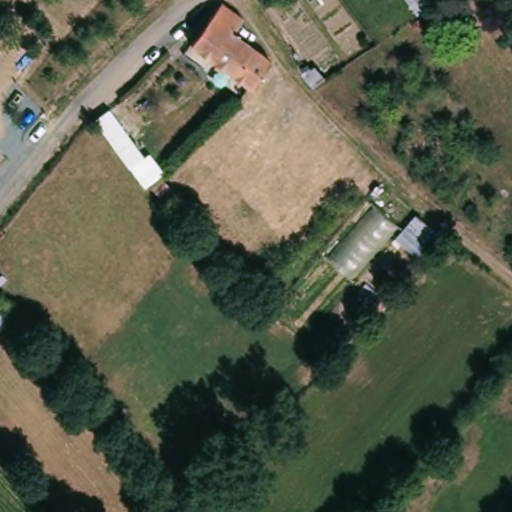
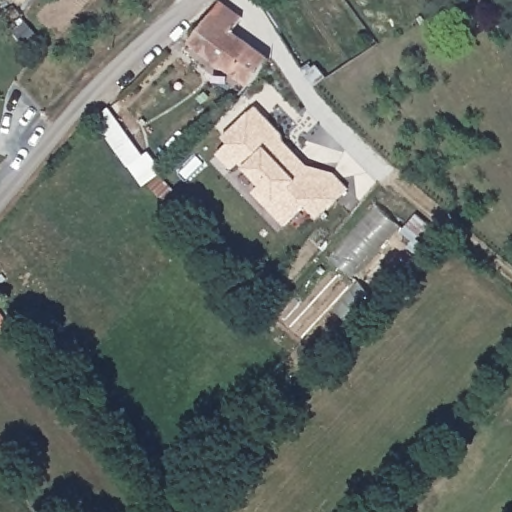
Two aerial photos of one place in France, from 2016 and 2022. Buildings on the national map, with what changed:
unchanged [(436,0),(429,4),(426,0),(436,0)]
unchanged [(215,3),(234,16),(224,31),(261,57),(242,84),(226,72),(186,44),(215,3)]
unchanged [(148,189),(88,124),(103,106),(166,174),(148,189)]
new [(239,164),(232,170),(217,155),(228,145),(223,139),(255,108),(282,135),(283,141),(307,167),(334,174),(349,189),(318,219),(306,207),(285,227),(268,209),(253,194),(261,186),(239,164)]
new [(417,214),(444,236),(424,260),(396,238),(417,214)]

